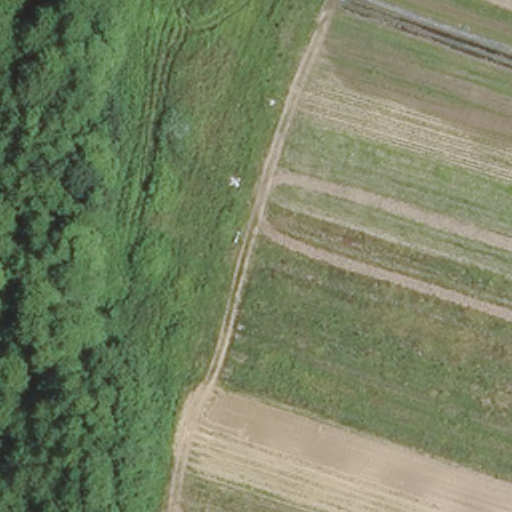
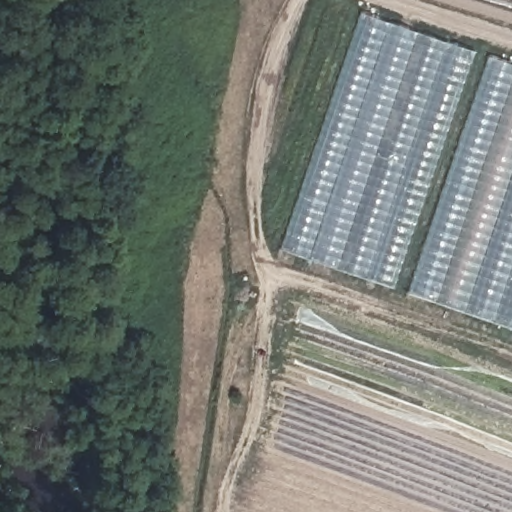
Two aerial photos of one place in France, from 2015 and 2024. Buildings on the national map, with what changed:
new [(390,287),(275,249),(357,13),(472,51),(390,287)]
new [(405,293),(486,56),(512,65),(512,331),(405,293)]

